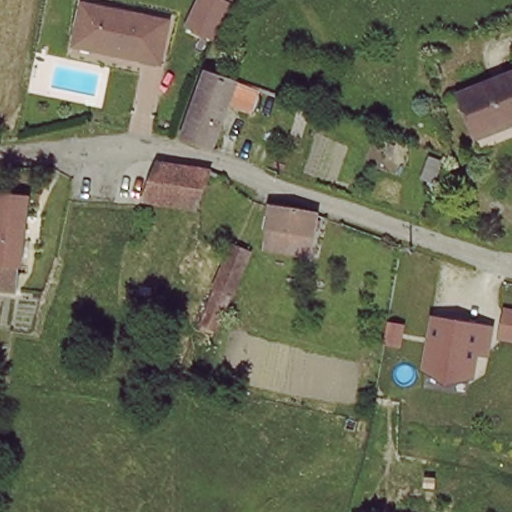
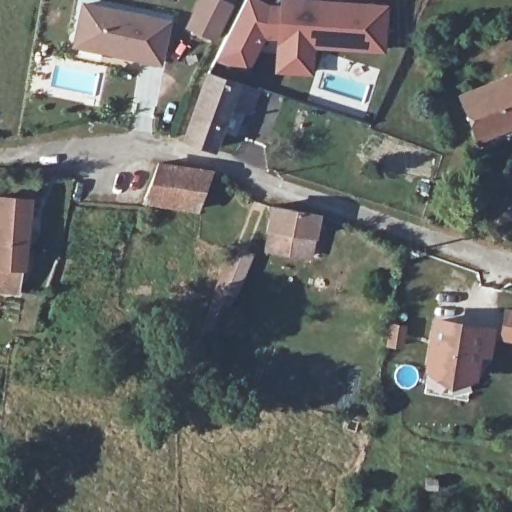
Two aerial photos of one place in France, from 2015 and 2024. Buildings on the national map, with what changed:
unchanged [(202,0),(230,0),(230,1),(211,41),(188,31),(202,0)]
new [(278,0),(335,0),(386,4),(381,51),(311,47),(309,74),(272,71),(274,38),(261,37),(246,72),(215,58),(242,0),(261,0),(266,2),(278,3),(278,0)]
unchanged [(166,26),(156,69),(101,55),(103,47),(75,40),(86,4),(166,26)]
unchanged [(475,137),(459,95),(512,74),(512,122),(475,137)]
unchanged [(216,147),(185,134),(211,79),(240,91),(216,147)]
unchanged [(153,165),(171,167),(190,170),(201,175),(191,210),(142,204),(153,165)]
unchanged [(0,274),(0,207),(31,209),(22,276),(0,274)]
unchanged [(275,247),(276,235),(268,234),(273,214),(283,215),(283,212),(318,221),(311,252),(275,247)]
new [(210,300),(213,301),(218,290),(213,288),(231,242),(253,251),(235,297),(226,294),(222,304),(228,306),(218,332),(200,325),(210,300)]
unchanged [(487,338),(487,357),(479,355),(476,380),(453,387),(423,368),(433,315),(495,324),(497,306),(512,309),(512,343),(487,338)]

